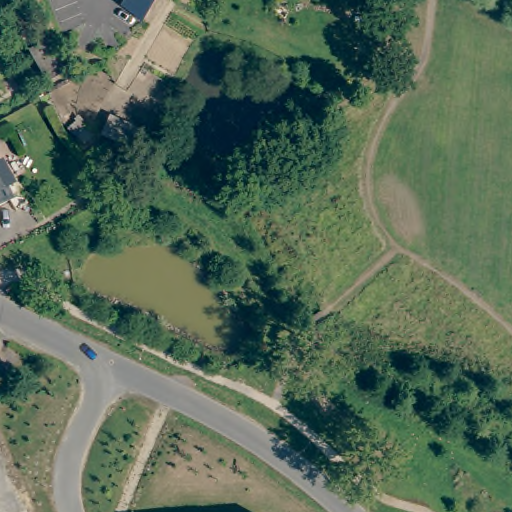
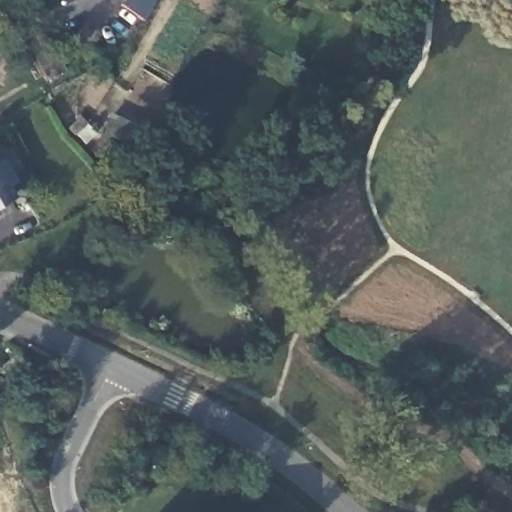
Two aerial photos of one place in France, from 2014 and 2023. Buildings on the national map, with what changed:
unchanged [(140,21),(128,15),(117,8),(122,0),(152,0),(140,21)]
unchanged [(28,49),(46,39),(64,71),(46,81),(28,49)]
unchanged [(150,144),(144,157),(103,139),(109,125),(150,144)]
unchanged [(0,169),(4,166),(11,180),(3,185),(11,200),(0,206),(0,169)]

